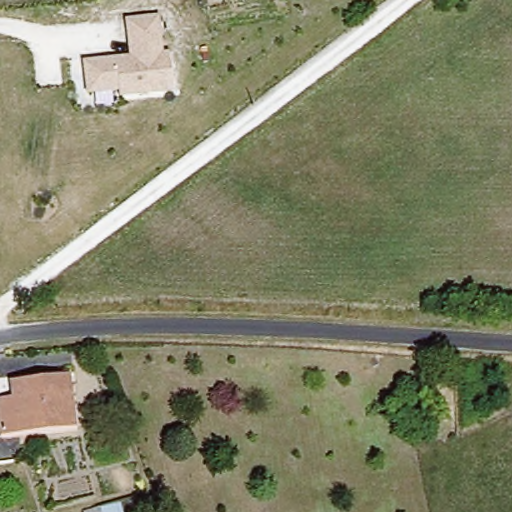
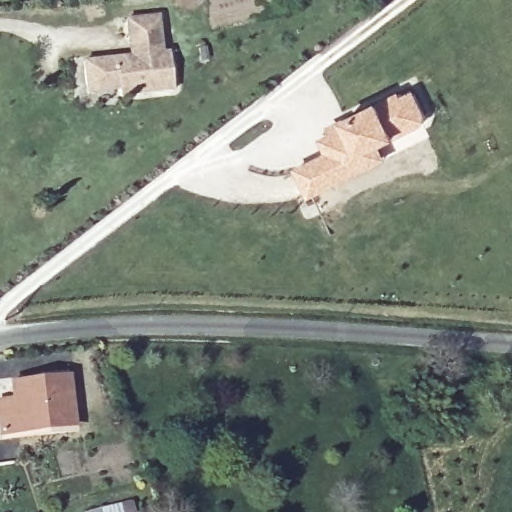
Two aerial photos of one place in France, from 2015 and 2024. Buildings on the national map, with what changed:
unchanged [(116,90),(86,93),(82,60),(128,54),(124,17),(159,13),(164,49),(170,49),(175,91),(117,97),(116,90)]
new [(428,116),(424,128),(398,139),(385,146),(390,159),(311,198),(296,168),(326,152),(320,138),(330,133),(327,128),(345,119),(380,101),(413,87),(428,116)]
unchanged [(73,375),(79,421),(11,430),(7,401),(22,398),(20,382),(73,375)]
unchanged [(139,512),(82,512),(137,502),(139,512)]

